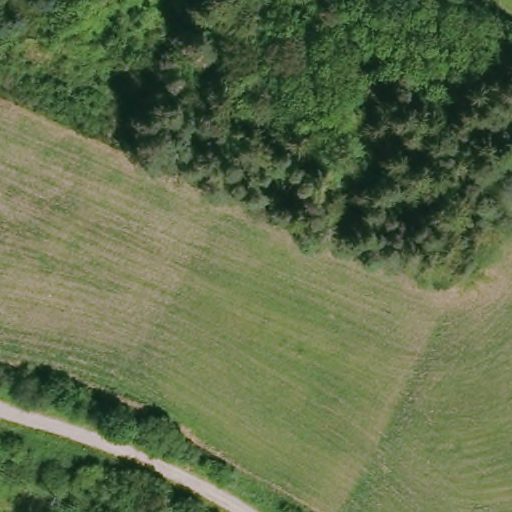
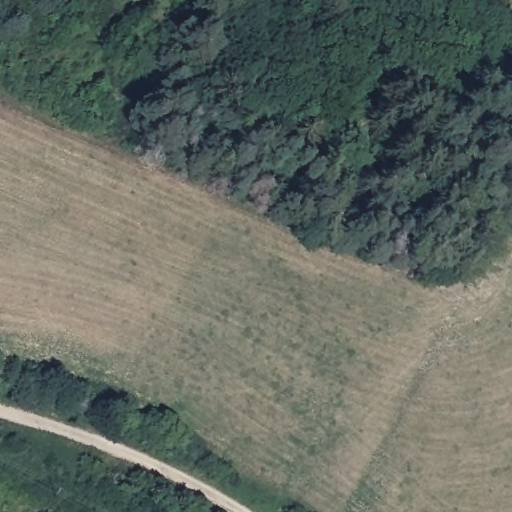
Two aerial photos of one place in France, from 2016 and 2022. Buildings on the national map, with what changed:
[]

